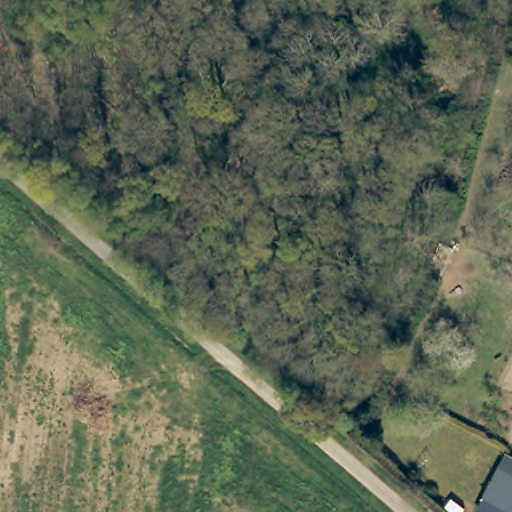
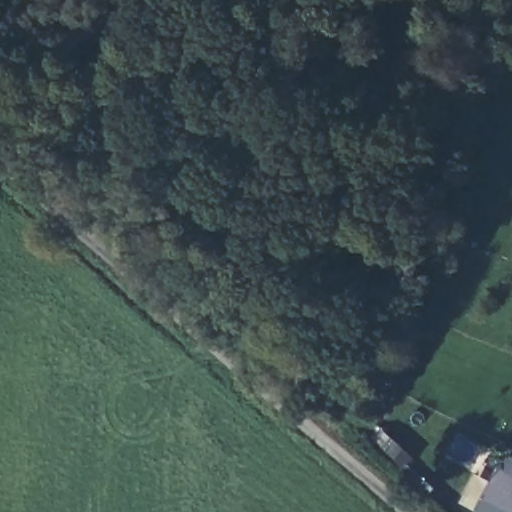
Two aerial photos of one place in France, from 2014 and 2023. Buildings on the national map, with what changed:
unchanged [(502,450),(512,455),(512,512),(480,495),(502,450)]

